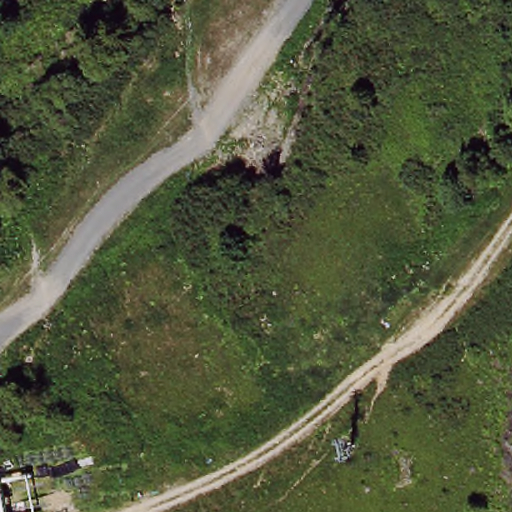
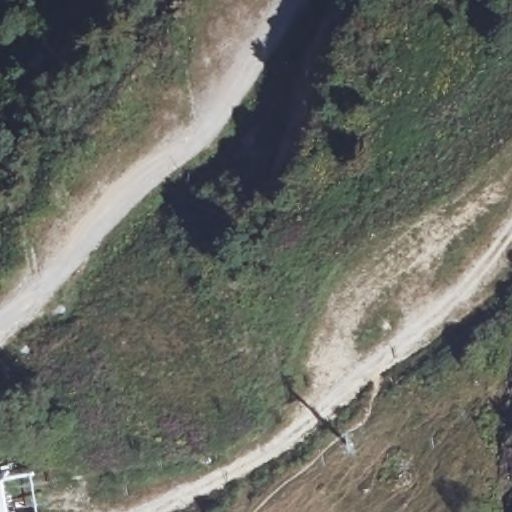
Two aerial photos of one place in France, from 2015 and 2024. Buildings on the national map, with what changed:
unchanged [(3,512),(0,512),(0,495),(3,512)]

